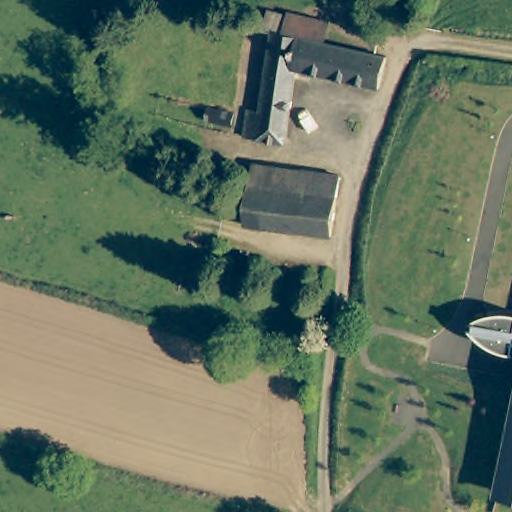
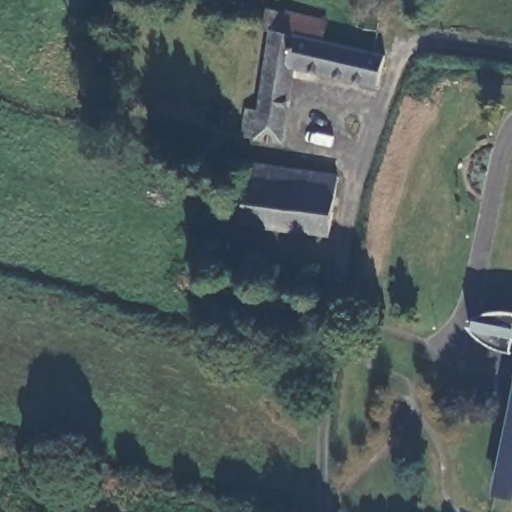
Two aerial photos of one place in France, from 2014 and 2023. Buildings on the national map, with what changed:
unchanged [(377,86),(368,84),(292,65),(284,140),(265,138),(243,134),(245,114),(247,107),(260,109),(271,30),(263,29),(265,19),(267,9),(272,11),(284,14),(285,10),(326,20),(321,39),(377,53),(384,54),(377,86)]
unchanged [(204,117),(207,105),(233,111),(230,123),(204,117)]
unchanged [(303,190),(299,229),(244,222),(252,161),(337,173),(334,194),(303,190)]
unchanged [(299,229),(303,190),(334,194),(328,234),(299,229)]
unchanged [(485,342),(475,334),(471,329),(474,319),(483,315),(497,312),(508,312),(512,313),(512,353),(498,349),(485,342)]
unchanged [(512,411),(512,500),(494,496),(512,411)]

